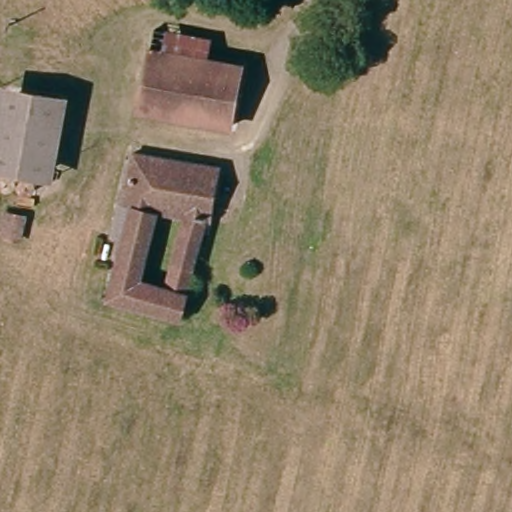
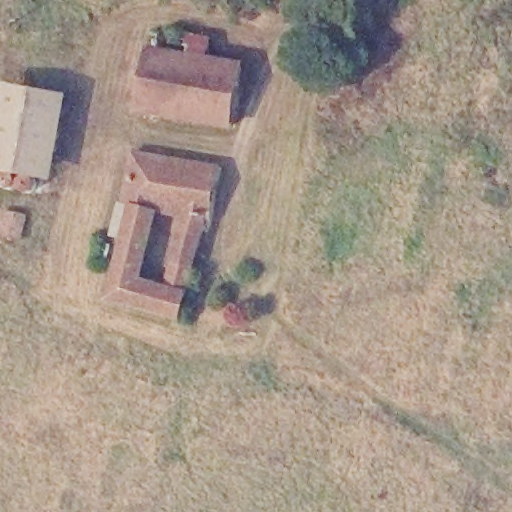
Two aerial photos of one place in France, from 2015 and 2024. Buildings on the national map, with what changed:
unchanged [(152,51),(155,30),(211,39),(209,61),(152,51)]
unchanged [(249,67),(240,127),(142,109),(152,51),(209,61),(249,67)]
unchanged [(0,139),(12,83),(19,85),(73,92),(56,176),(5,166),(0,165),(0,139)]
unchanged [(187,323),(122,305),(137,249),(123,245),(147,148),(229,166),(187,323)]

